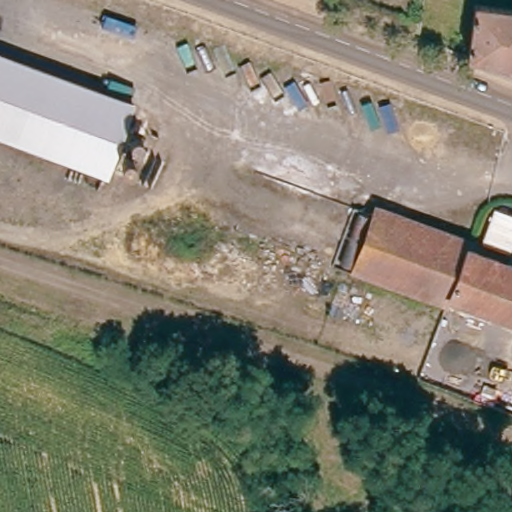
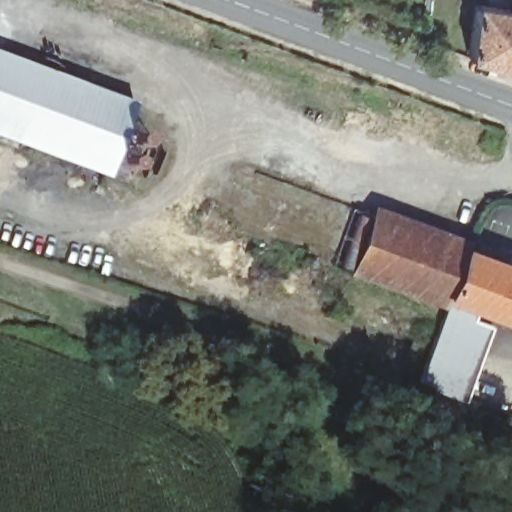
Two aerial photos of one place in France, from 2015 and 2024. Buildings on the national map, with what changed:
unchanged [(468,56),(475,4),(512,9),(512,69),(468,56)]
unchanged [(105,173),(0,134),(0,51),(131,100),(105,173)]
unchanged [(448,295),(356,260),(373,215),(465,249),(448,295)]
unchanged [(448,295),(465,249),(512,266),(512,318),(448,295)]
unchanged [(351,272),(356,260),(448,295),(446,301),(445,305),(351,272)]
new [(418,383),(445,305),(446,301),(448,295),(477,305),(472,318),(490,325),(463,400),(418,383)]

